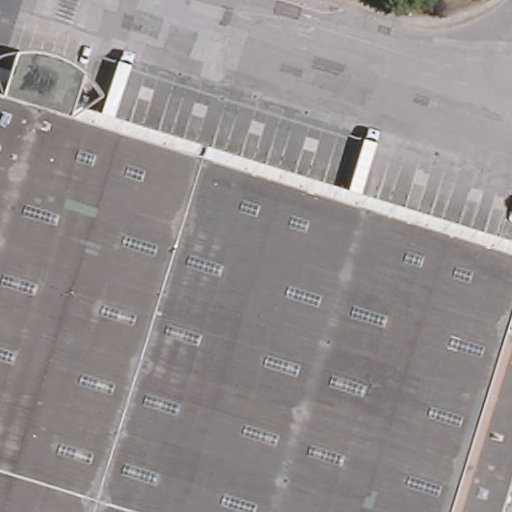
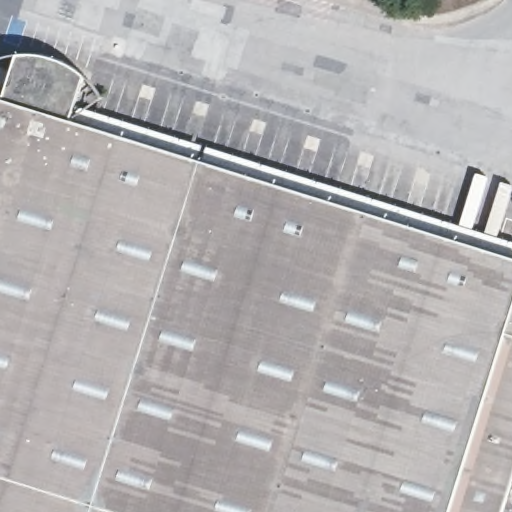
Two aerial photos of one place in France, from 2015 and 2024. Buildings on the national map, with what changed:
unchanged [(18,51),(40,52),(55,56),(67,62),(83,74),(70,117),(512,254),(512,472),(499,512),(0,512),(0,94),(2,95),(18,51)]

